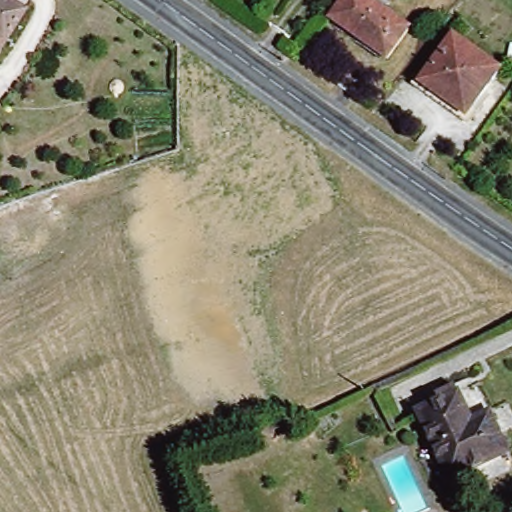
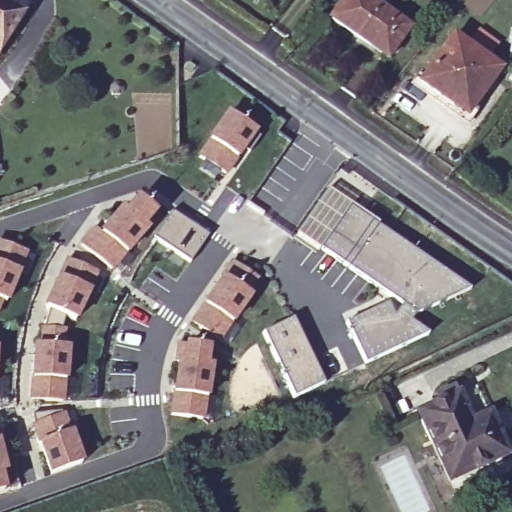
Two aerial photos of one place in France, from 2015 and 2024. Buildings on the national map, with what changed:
unchanged [(387,57),(331,16),(342,0),(371,0),(409,27),(387,57)]
unchanged [(0,51),(0,3),(21,16),(0,51)]
unchanged [(467,115),(420,81),(453,34),(501,68),(467,115)]
new [(207,142),(206,141),(225,115),(250,132),(249,134),(255,138),(244,154),(239,150),(232,160),(231,160),(220,175),(196,158),(207,142)]
new [(92,231),(99,236),(120,211),(124,214),(135,201),(151,215),(139,228),(143,232),(122,257),(121,256),(107,272),(79,248),(92,231)]
new [(345,208),(467,290),(412,316),(407,323),(426,335),(365,365),(316,250),(345,208)]
new [(167,213),(204,238),(187,263),(150,239),(167,213)]
new [(14,276),(15,277),(3,307),(0,306),(0,248),(22,257),(14,276)]
new [(65,263),(92,276),(85,294),(86,294),(72,324),(44,311),(65,263)]
new [(221,280),(219,279),(229,264),(252,280),(242,295),(247,298),(217,341),(191,324),(221,280)]
new [(290,320),(322,386),(295,399),(260,334),(290,320)]
new [(34,345),(38,345),(39,328),(61,328),(60,345),(65,347),(64,378),(63,378),(62,401),(32,400),(34,345)]
new [(177,364),(174,362),(177,345),(206,350),(204,367),(209,367),(201,421),(170,415),(177,364)]
unchanged [(450,480),(418,412),(437,403),(434,395),(453,386),(456,393),(459,392),(472,420),(490,412),(498,431),(508,453),(450,480)]
new [(60,418),(67,437),(69,436),(80,467),(50,477),(32,429),(60,418)]
new [(0,478),(0,465),(3,477),(0,478)]
new [(0,497),(0,487),(2,496),(0,497)]

